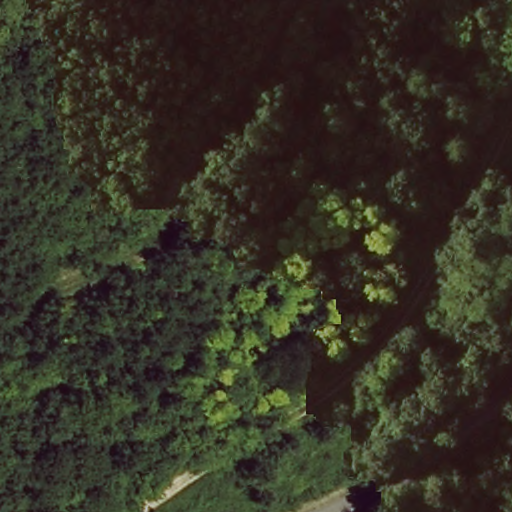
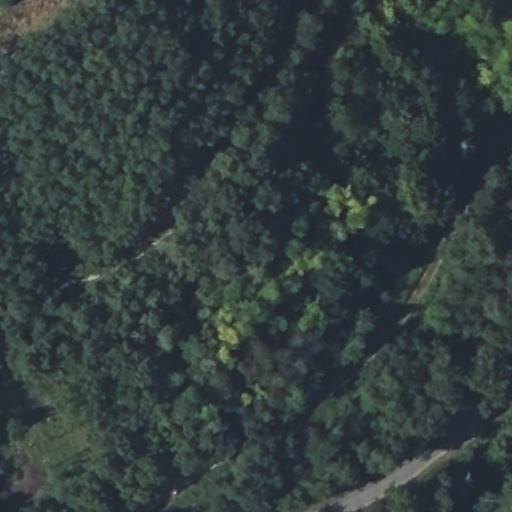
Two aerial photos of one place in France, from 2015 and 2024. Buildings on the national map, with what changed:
[]

